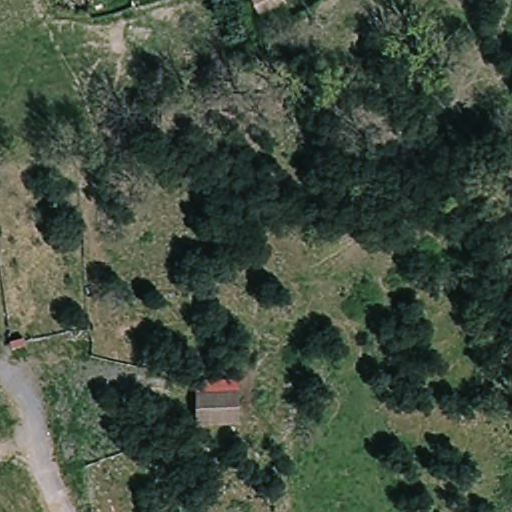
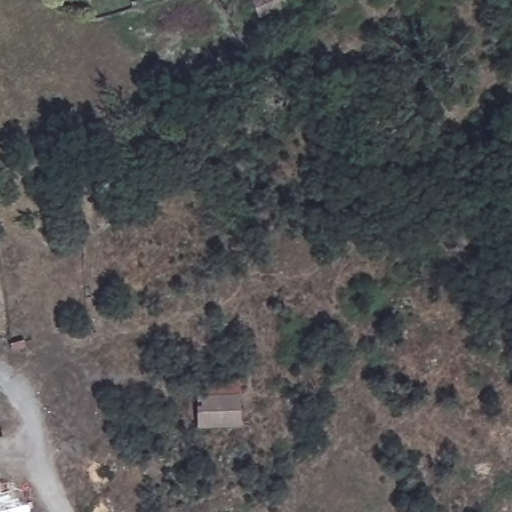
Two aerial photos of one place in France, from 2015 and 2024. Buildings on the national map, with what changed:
unchanged [(260,10),(257,0),(288,0),(288,5),(260,10)]
unchanged [(240,427),(198,429),(196,382),(239,381),(240,427)]

